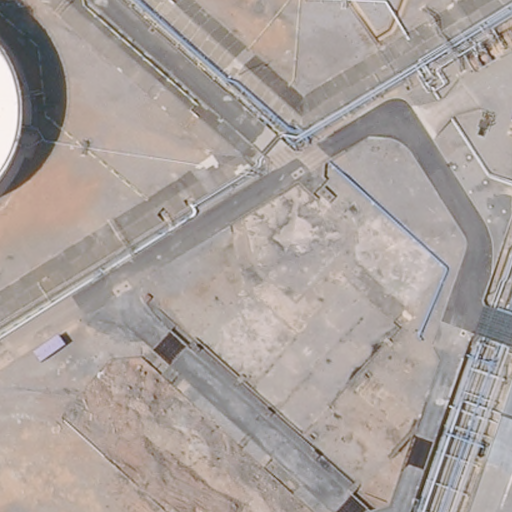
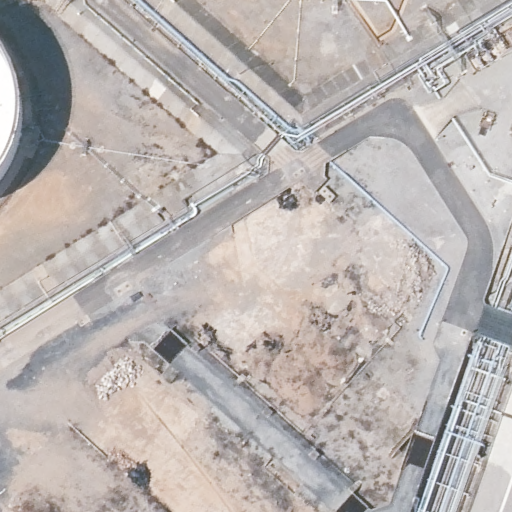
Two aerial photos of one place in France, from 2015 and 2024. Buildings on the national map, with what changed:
[]

